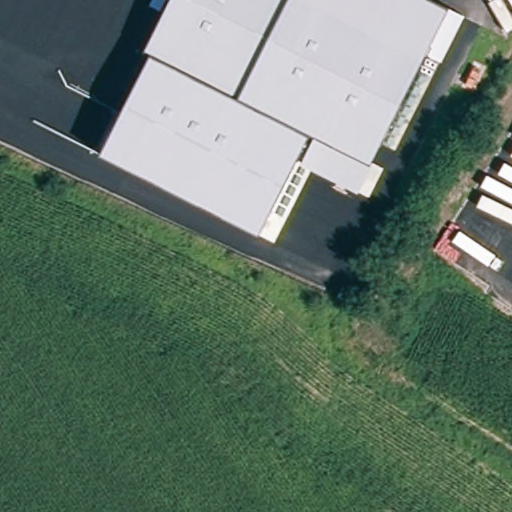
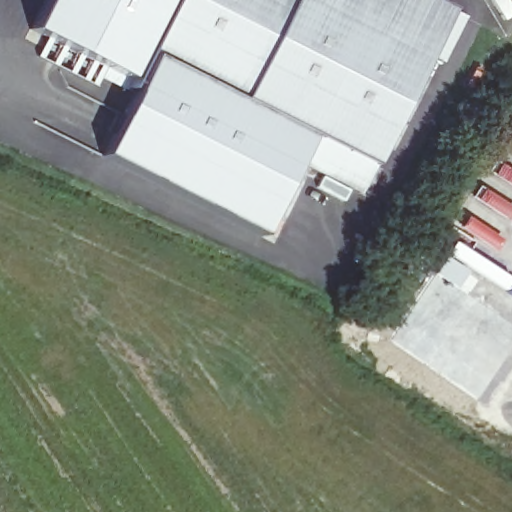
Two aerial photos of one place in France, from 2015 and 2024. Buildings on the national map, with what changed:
new [(145,46),(129,80),(31,30),(47,0),(173,0),(149,47),(145,46)]
unchanged [(436,0),(448,6),(465,17),(443,61),(428,54),(372,162),(243,96),(149,47),(173,0),(436,0)]
unchanged [(358,193),(298,163),(262,236),(103,155),(156,50),(243,96),(372,162),(358,193)]

